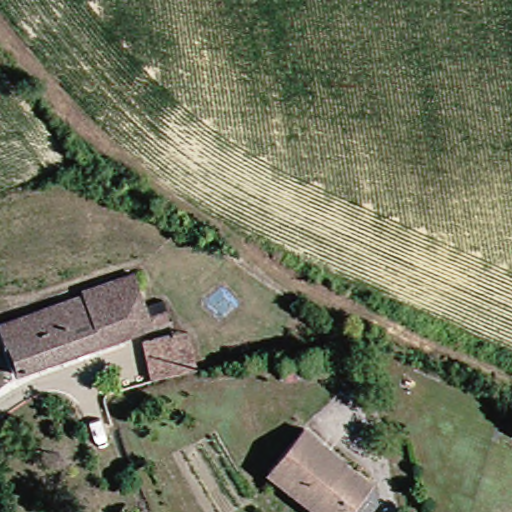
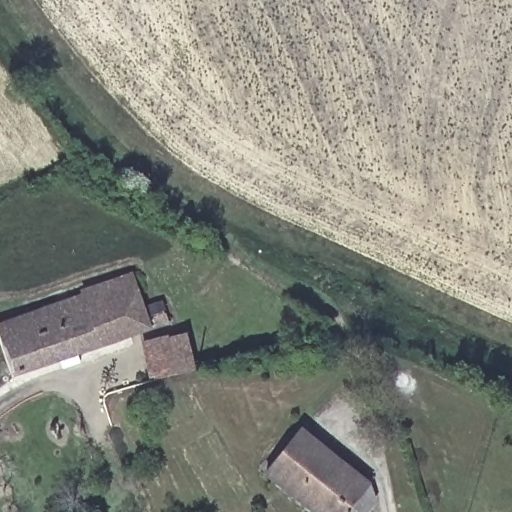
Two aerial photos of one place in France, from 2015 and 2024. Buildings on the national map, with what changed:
unchanged [(27,380),(5,323),(143,273),(156,306),(168,305),(174,322),(27,380)]
unchanged [(176,378),(163,381),(150,343),(186,332),(198,366),(191,374),(176,378)]
unchanged [(308,428),(378,477),(374,488),(386,499),(376,512),(322,512),(274,478),(308,428)]

